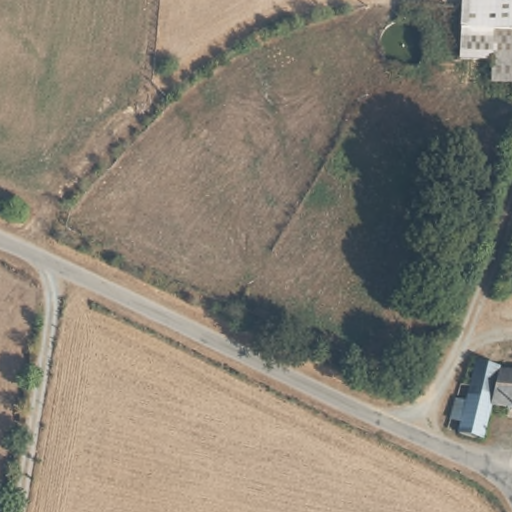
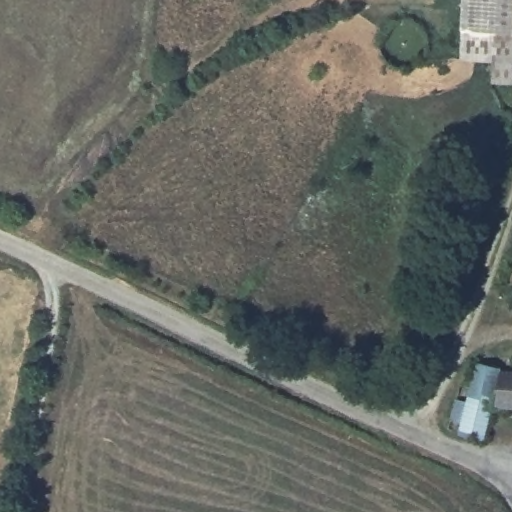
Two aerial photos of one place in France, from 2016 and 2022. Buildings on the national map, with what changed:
unchanged [(467,0),(512,0),(512,30),(495,29),(492,56),(462,54),(467,0)]
unchanged [(508,80),(490,78),(492,56),(495,29),(512,30),(512,58),(510,57),(508,80)]
unchanged [(450,415),(452,394),(468,396),(470,380),(460,379),(462,354),(498,361),(497,365),(512,367),(512,404),(490,403),(485,433),(460,430),(462,416),(450,415)]

